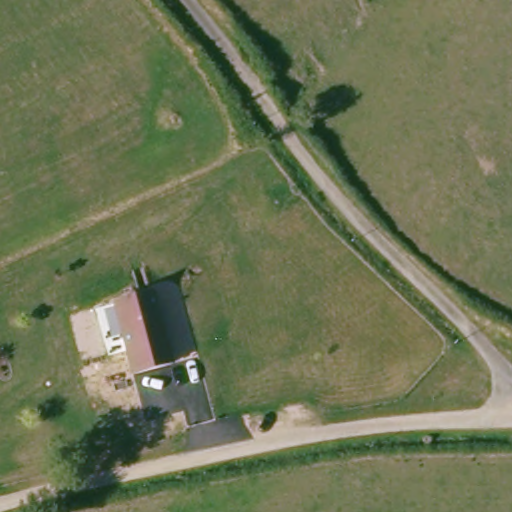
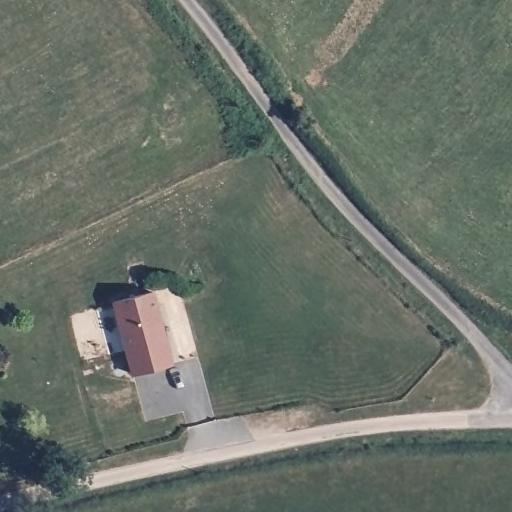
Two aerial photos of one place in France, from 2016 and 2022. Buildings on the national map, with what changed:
unchanged [(112,303),(151,292),(171,364),(132,375),(112,303)]

